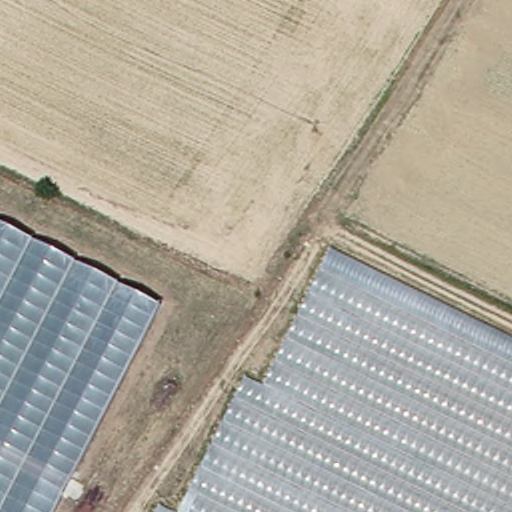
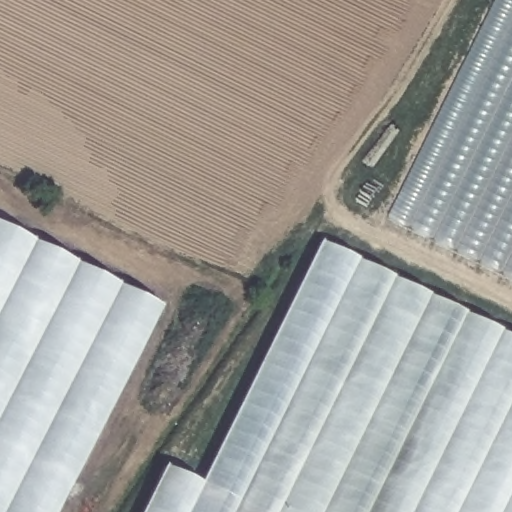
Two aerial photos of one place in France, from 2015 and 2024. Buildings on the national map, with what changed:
new [(494,0),(512,0),(512,281),(386,220),(494,0)]
demolished [(503,0),(512,0),(512,97),(460,72),(503,0)]
unchanged [(160,302),(52,512),(0,512),(0,221),(160,302)]
unchanged [(191,489),(248,370),(266,382),(333,245),(512,332),(512,512),(146,512),(165,475),(191,489)]

